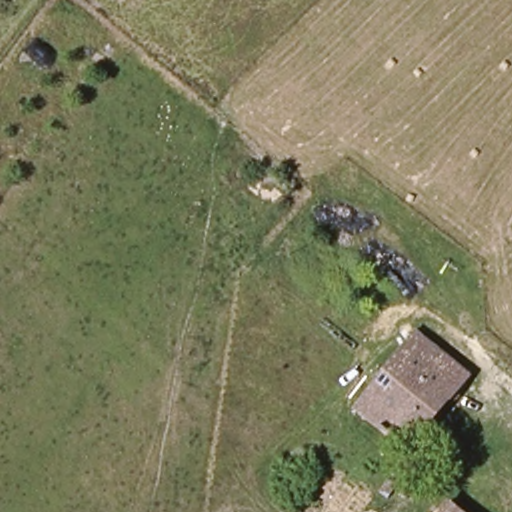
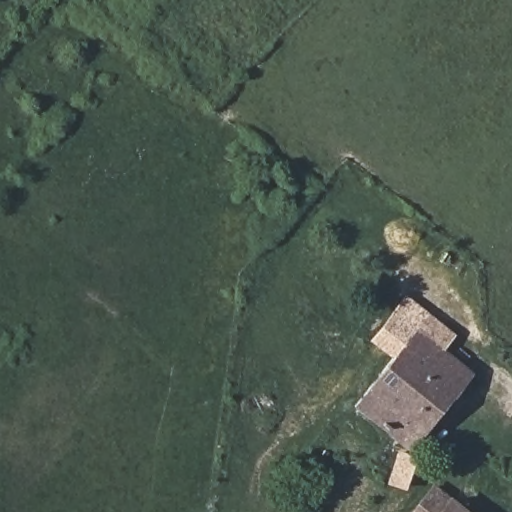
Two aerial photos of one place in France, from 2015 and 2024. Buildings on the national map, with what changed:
new [(420,332),(415,340),(399,360),(371,338),(405,296),(454,335),(443,350),(420,332)]
unchanged [(420,332),(473,372),(415,447),(362,407),(415,340),(420,332)]
unchanged [(463,512),(444,512),(451,503),(463,512)]

